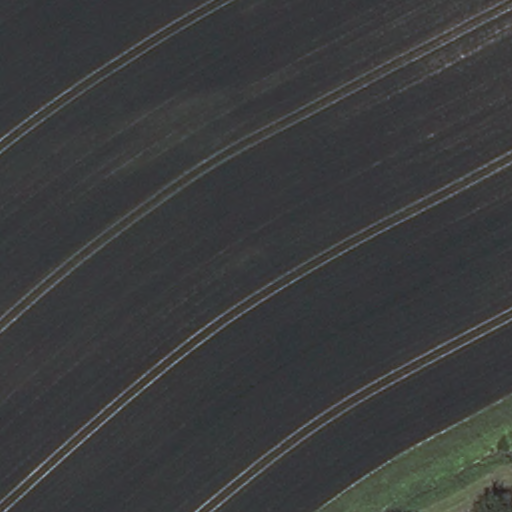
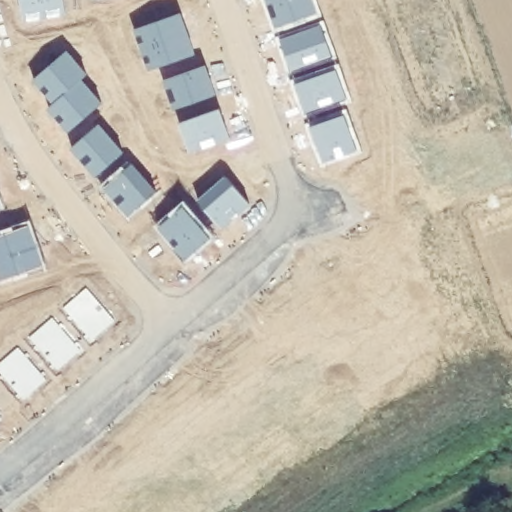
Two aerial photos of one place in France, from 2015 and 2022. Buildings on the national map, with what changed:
new [(64,12),(23,20),(19,0),(62,0),(64,12)]
new [(90,1),(90,0),(96,0),(90,1)]
new [(318,15),(274,28),(264,0),(312,0),(318,15)]
new [(179,14),(194,56),(147,72),(133,31),(179,14)]
new [(321,26),(331,57),(289,70),(280,40),(321,26)]
new [(65,52),(86,75),(80,80),(102,104),(68,135),(46,110),(51,106),(33,81),(65,52)]
new [(206,66),(216,97),(172,111),(162,82),(206,66)]
new [(335,70),(346,100),(304,113),(294,85),(335,70)]
new [(218,109),(231,141),(188,155),(178,125),(218,109)]
new [(344,116),(357,152),(322,165),(308,129),(344,116)]
new [(123,154),(95,178),(70,150),(98,125),(123,154)]
new [(156,192),(128,218),(103,191),(131,164),(156,192)]
new [(225,178),(249,207),(221,230),(196,202),(225,178)]
new [(183,203),(213,239),(184,266),(154,229),(183,203)]
new [(42,267),(0,281),(0,237),(29,227),(42,267)]
new [(113,322),(90,341),(65,310),(85,291),(113,322)]
new [(51,321),(78,350),(58,371),(31,339),(51,321)]
new [(44,380),(22,398),(0,373),(0,367),(18,350),(44,380)]

